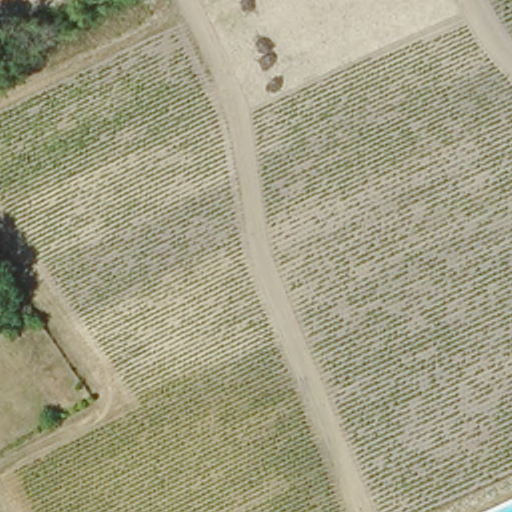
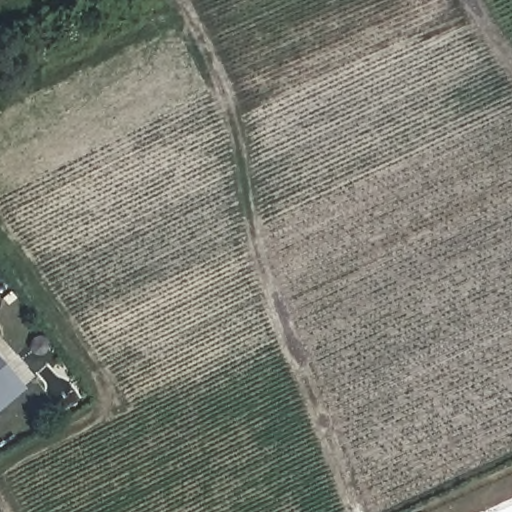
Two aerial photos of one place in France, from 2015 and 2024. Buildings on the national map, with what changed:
new [(25,387),(0,408),(0,357),(25,387)]

